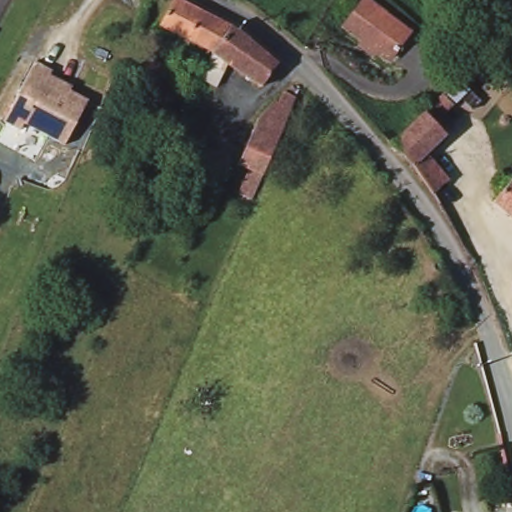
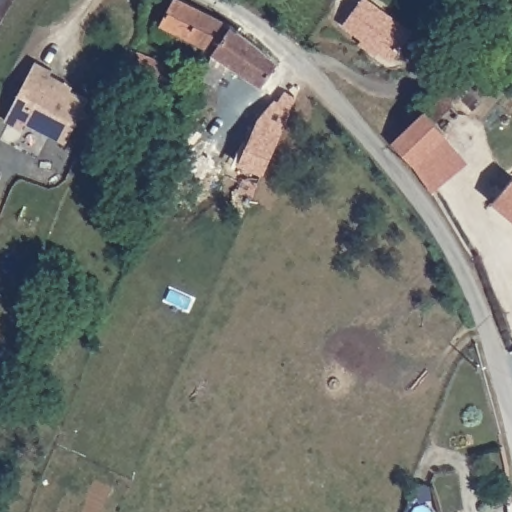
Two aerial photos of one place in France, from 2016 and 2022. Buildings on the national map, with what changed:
unchanged [(225,11),(240,28),(228,35),(217,47),(165,8),(169,0),(206,0),(225,11)]
unchanged [(359,0),(367,0),(407,25),(388,51),(345,23),(359,0)]
unchanged [(228,35),(240,28),(278,66),(260,89),(237,66),(222,88),(205,82),(217,47),(228,35)]
unchanged [(144,41),(140,52),(165,63),(155,96),(117,77),(124,62),(135,34),(144,41)]
unchanged [(53,73),(50,78),(60,82),(72,87),(70,91),(87,99),(66,143),(28,126),(25,132),(10,125),(37,66),(53,73)]
unchanged [(431,194),(415,168),(400,146),(466,72),(487,91),(475,105),(463,94),(439,118),(450,128),(428,153),(450,176),(431,194)]
unchanged [(241,190),(253,166),(240,160),(261,121),(276,97),(283,100),(288,90),(302,97),(257,198),(241,190)]
unchanged [(505,195),(512,188),(512,202),(505,195)]

